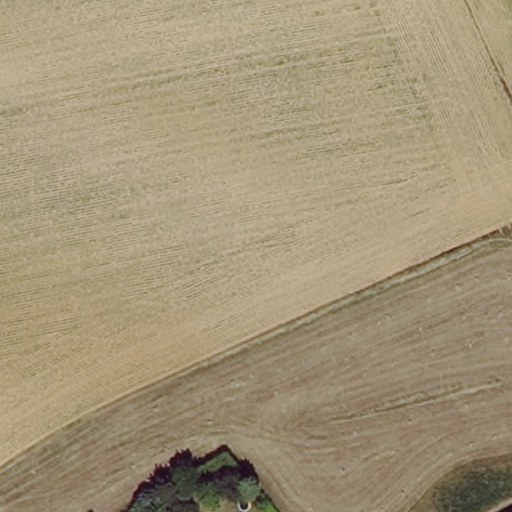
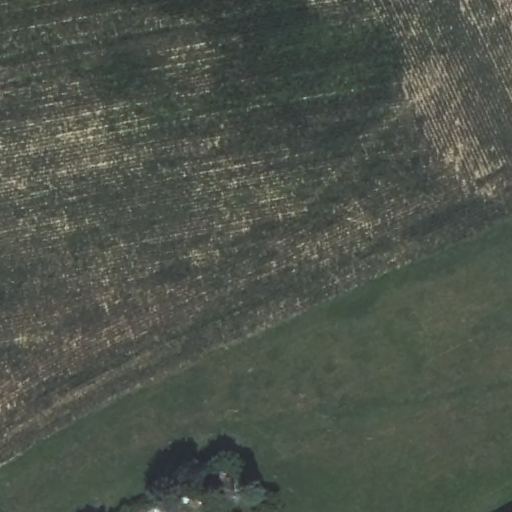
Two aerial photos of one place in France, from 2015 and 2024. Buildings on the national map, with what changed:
unchanged [(217,465),(239,453),(250,471),(228,482),(217,465)]

